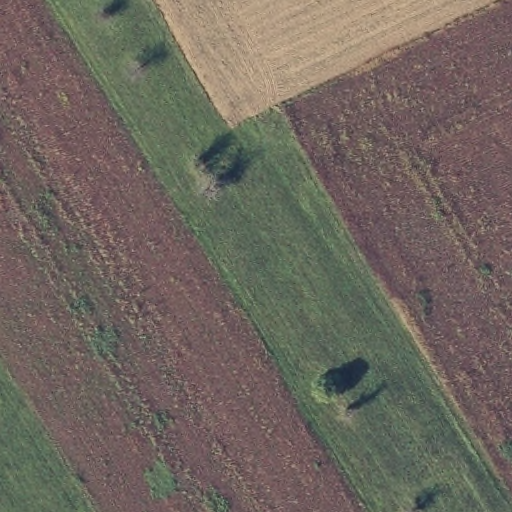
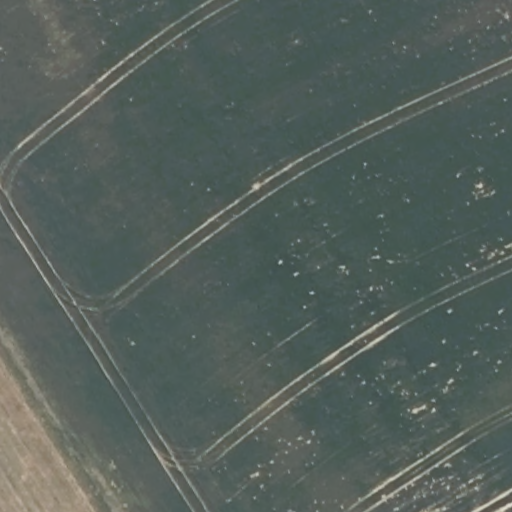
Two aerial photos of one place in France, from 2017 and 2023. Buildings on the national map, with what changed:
[]

